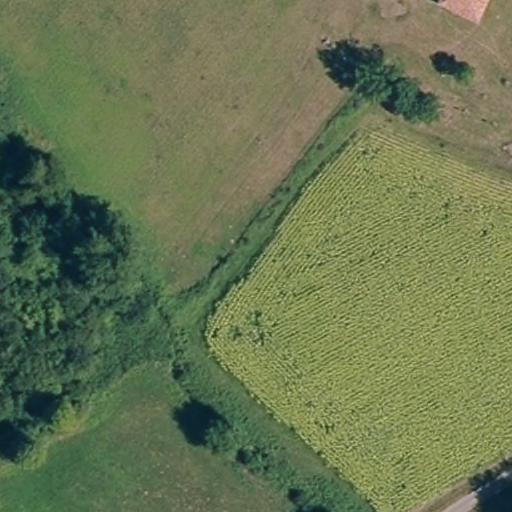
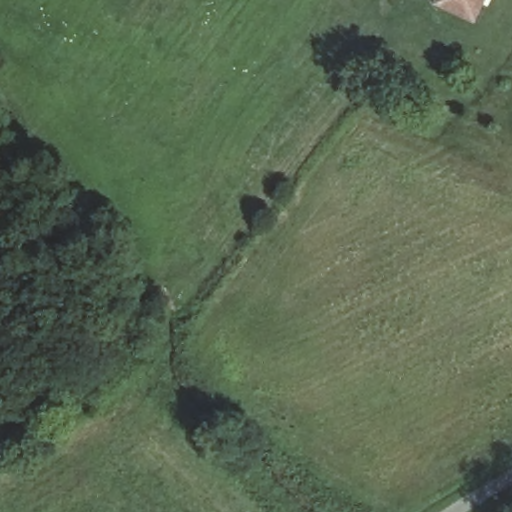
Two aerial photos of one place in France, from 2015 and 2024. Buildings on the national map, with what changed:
unchanged [(450,0),(490,0),(483,16),(466,9),(449,2),(450,0)]

